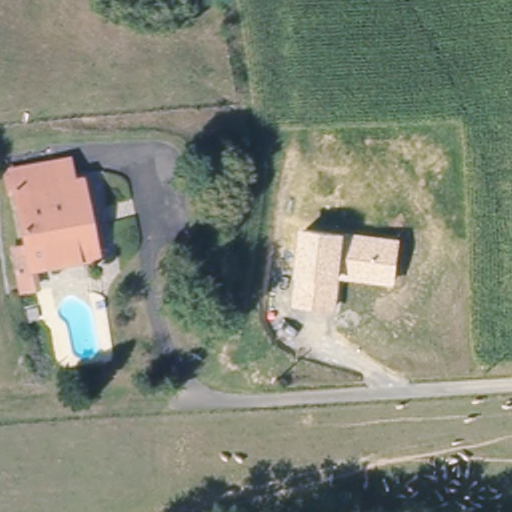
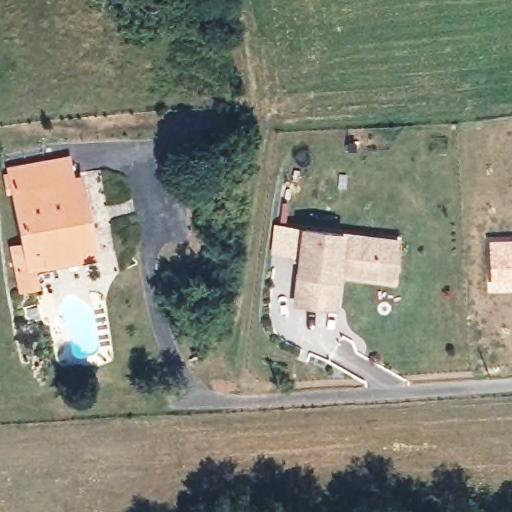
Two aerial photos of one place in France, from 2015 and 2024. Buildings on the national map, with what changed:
unchanged [(84,268),(79,253),(29,263),(8,164),(41,154),(46,177),(81,169),(99,251),(101,262),(84,268)]
unchanged [(396,284),(341,280),(337,312),(293,307),(296,276),(302,227),(345,232),(401,238),(396,284)]
new [(512,289),(490,291),(487,240),(512,239),(512,289)]

